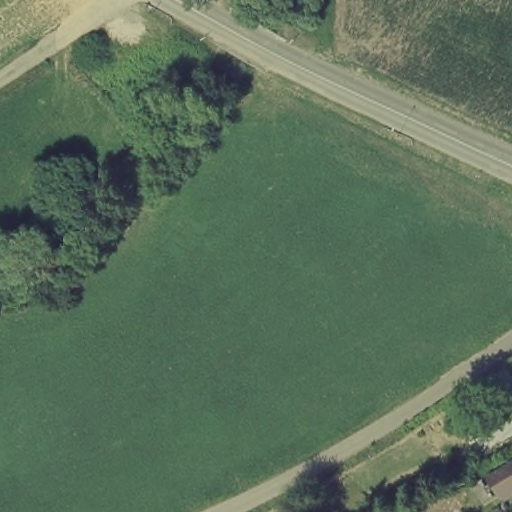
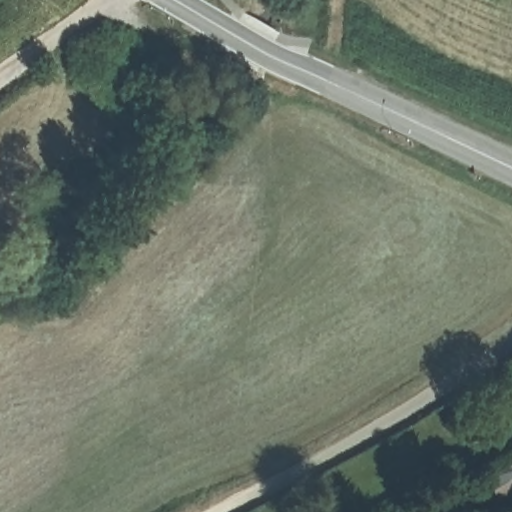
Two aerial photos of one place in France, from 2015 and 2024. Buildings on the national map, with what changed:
unchanged [(469,480),(512,457),(512,485),(481,502),(469,480)]

